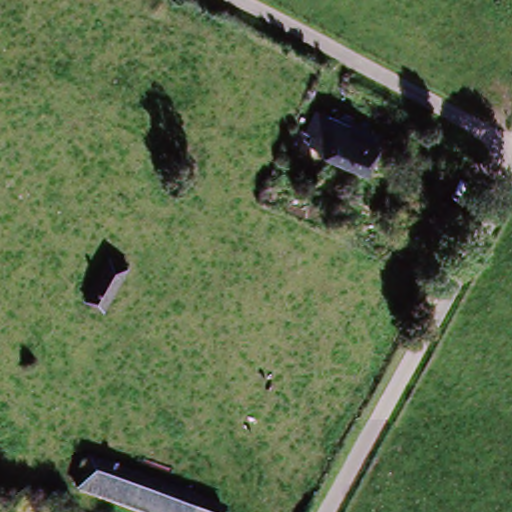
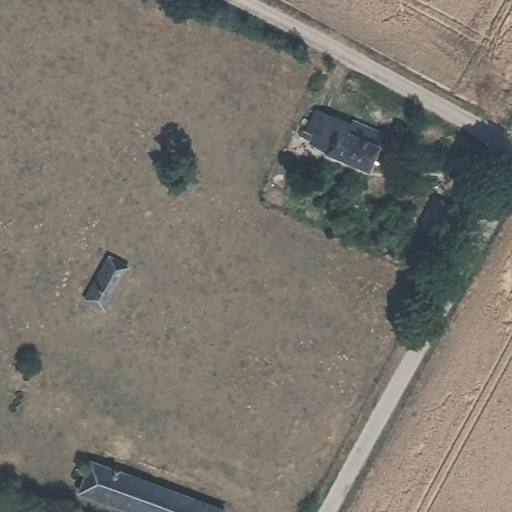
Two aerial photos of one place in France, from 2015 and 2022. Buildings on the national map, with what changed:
unchanged [(372,169),(330,148),(334,139),(324,135),(331,120),(385,145),(372,169)]
unchanged [(432,244),(449,210),(464,218),(445,252),(432,244)]
unchanged [(106,310),(89,300),(111,260),(131,270),(106,310)]
unchanged [(93,473),(202,510),(210,512),(114,512),(83,501),(93,473)]

